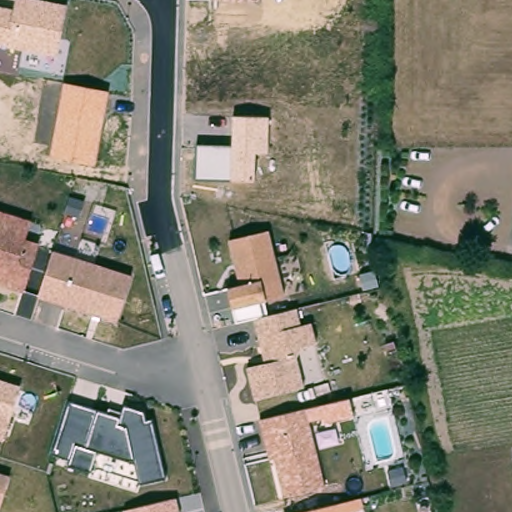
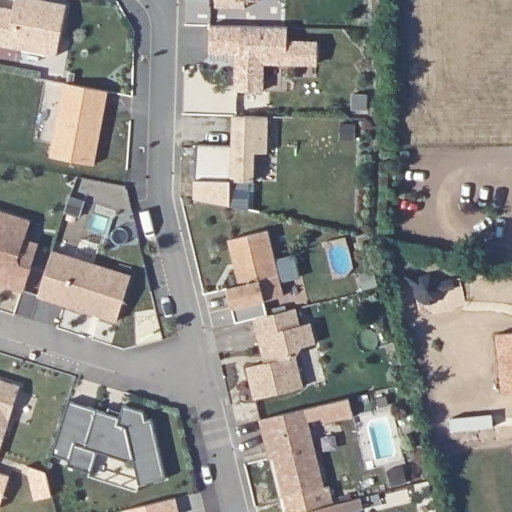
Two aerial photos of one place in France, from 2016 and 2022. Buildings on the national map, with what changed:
unchanged [(13,10),(15,0),(38,0),(67,6),(57,55),(0,45),(0,7),(13,10)]
new [(210,52),(211,26),(288,27),(288,42),(318,43),(318,64),(263,62),(262,92),(237,91),(237,67),(238,53),(210,52)]
unchanged [(64,82),(110,91),(96,165),(51,157),(64,82)]
unchanged [(196,145),(231,146),(232,117),(268,117),(267,154),(254,154),(255,181),(231,180),(196,179),(196,145)]
unchanged [(29,221),(24,240),(39,244),(22,291),(0,283),(0,211),(29,221)]
unchanged [(226,287),(239,284),(227,241),(267,230),(283,294),(231,307),(226,287)]
unchanged [(52,251),(130,276),(115,321),(36,296),(52,251)]
unchanged [(267,315),(252,318),(235,322),(231,307),(265,298),(267,315)]
unchanged [(264,363),(252,318),(295,307),(300,325),(310,322),(315,342),(301,346),(295,358),(302,387),(251,398),(244,368),(264,363)]
unchanged [(0,440),(0,379),(20,386),(4,442),(0,440)]
unchanged [(305,408),(350,398),(354,418),(323,425),(322,417),(307,422),(305,408)]
unchanged [(68,465),(70,460),(50,454),(69,402),(97,411),(120,417),(123,408),(143,413),(144,421),(151,421),(164,478),(139,484),(134,463),(97,452),(90,472),(68,465)]
unchanged [(273,457),(267,459),(257,420),(305,408),(323,485),(283,497),(273,457)]
unchanged [(8,475),(0,502),(0,472),(8,475)]
unchanged [(360,497),(363,511),(360,512),(302,512),(360,497)]
unchanged [(122,512),(175,498),(178,512),(122,512)]

